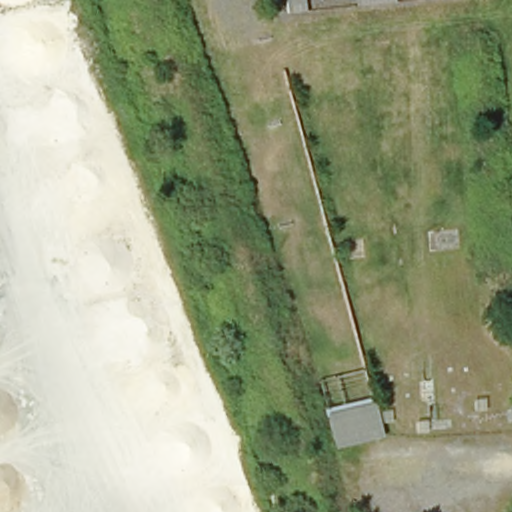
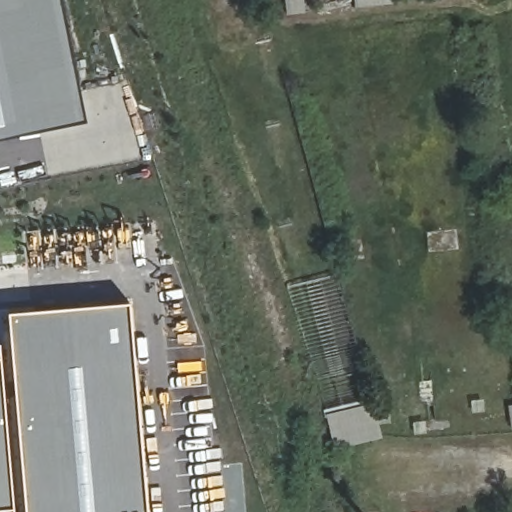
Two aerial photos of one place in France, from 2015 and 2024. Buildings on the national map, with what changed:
new [(0,142),(0,0),(66,0),(92,122),(0,142)]
unchanged [(283,19),(279,0),(312,0),(312,15),(283,19)]
unchanged [(350,7),(350,0),(395,0),(395,2),(350,7)]
new [(139,300),(156,512),(34,512),(15,310),(139,300)]
new [(18,512),(0,512),(0,343),(4,343),(18,512)]
unchanged [(332,451),(321,411),(374,398),(385,438),(332,451)]
unchanged [(512,400),(512,421),(506,422),(504,401),(512,400)]

